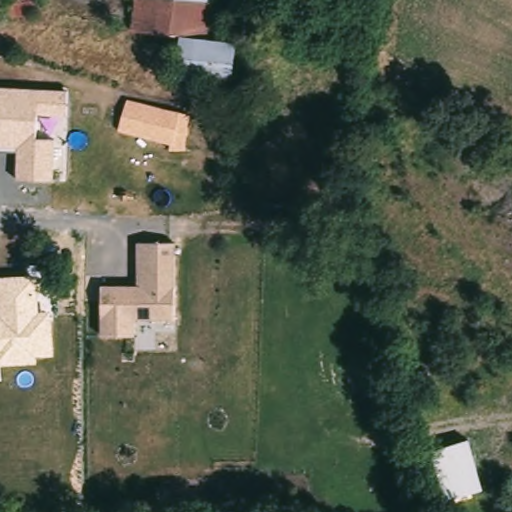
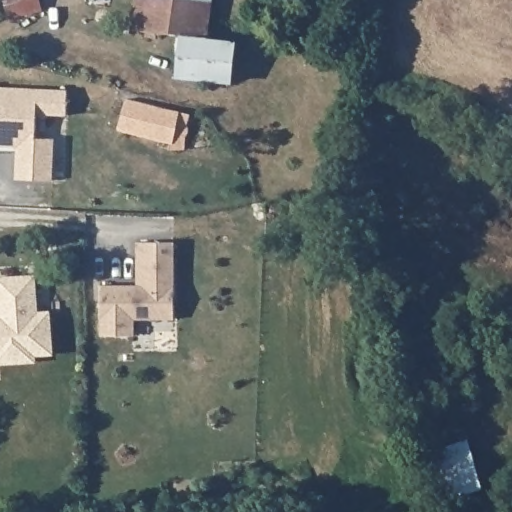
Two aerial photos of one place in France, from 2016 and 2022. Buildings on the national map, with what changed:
unchanged [(3,0),(44,0),(46,13),(8,20),(3,0)]
unchanged [(209,41),(179,37),(129,29),(134,0),(215,0),(209,41)]
unchanged [(229,44),(224,88),(207,86),(172,80),(179,37),(209,41),(224,43),(229,44)]
unchanged [(35,117),(35,138),(56,139),(54,182),(16,181),(16,150),(0,149),(0,85),(70,88),(70,118),(35,117)]
unchanged [(188,116),(182,156),(168,154),(169,145),(118,137),(125,103),(188,116)]
unchanged [(175,319),(135,320),(136,335),(100,336),(100,283),(137,283),(138,241),(175,242),(175,319)]
unchanged [(39,313),(51,312),(55,355),(38,357),(38,362),(0,364),(0,277),(37,275),(39,313)]

